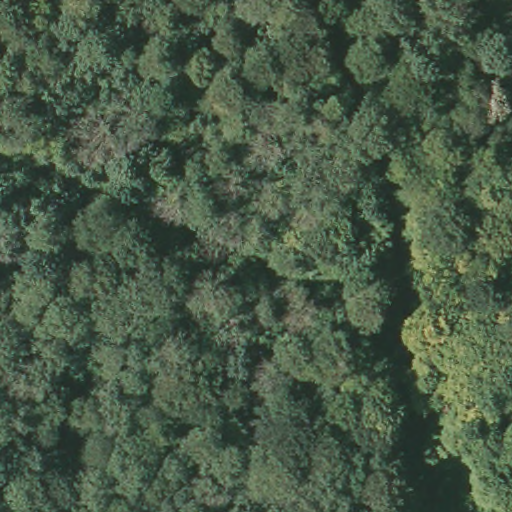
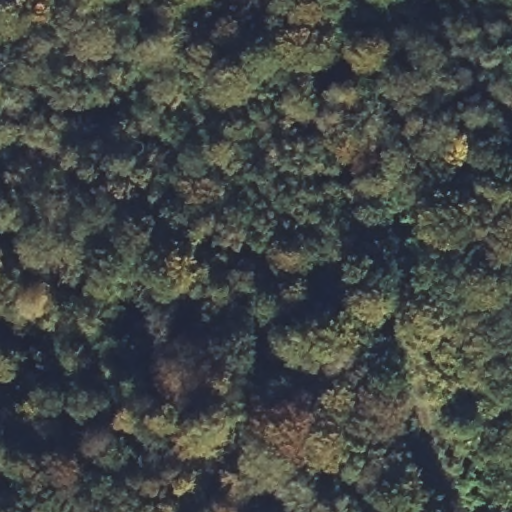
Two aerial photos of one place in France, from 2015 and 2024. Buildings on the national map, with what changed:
[]

